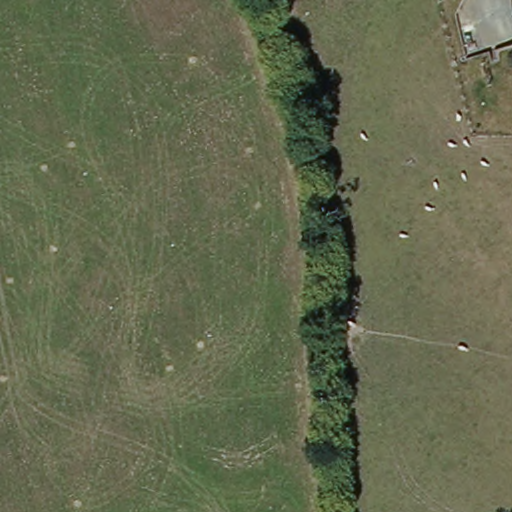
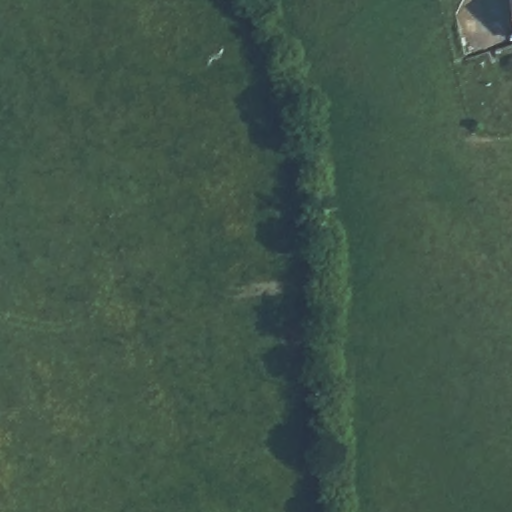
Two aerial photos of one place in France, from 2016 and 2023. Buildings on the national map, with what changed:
unchanged [(512,0),(512,4),(511,0),(512,0)]

